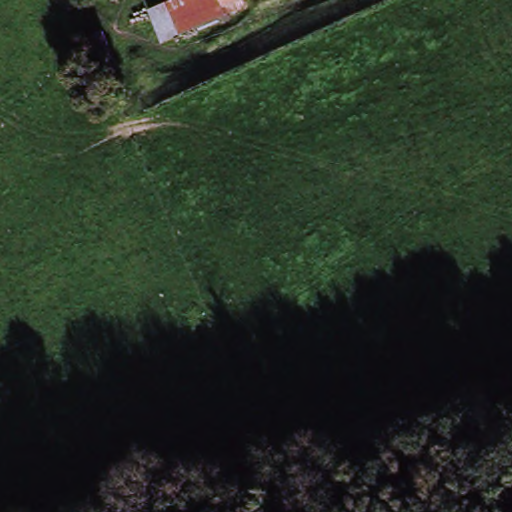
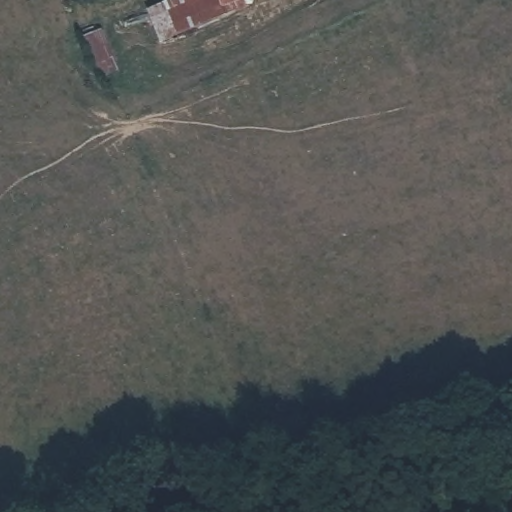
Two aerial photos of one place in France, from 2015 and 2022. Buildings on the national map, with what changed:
unchanged [(247,5),(163,40),(143,7),(158,0),(245,0),(247,5)]

